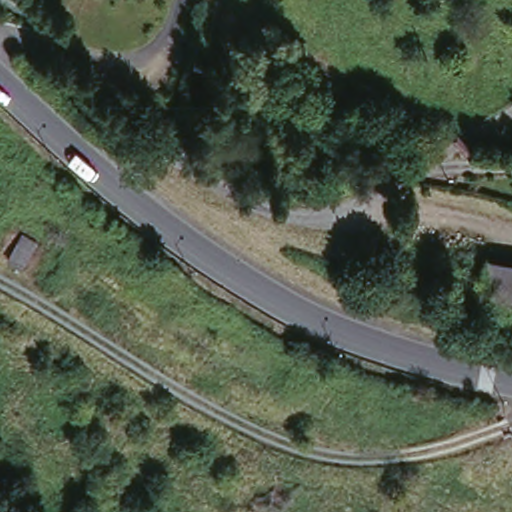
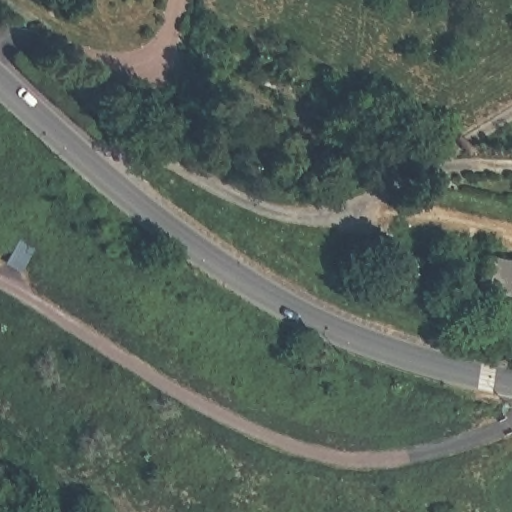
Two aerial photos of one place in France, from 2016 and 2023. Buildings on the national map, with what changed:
unchanged [(192,130),(190,142),(176,139),(180,127),(192,130)]
unchanged [(36,244),(22,270),(7,262),(20,235),(36,244)]
unchanged [(512,263),(512,297),(481,291),(488,258),(512,263)]

